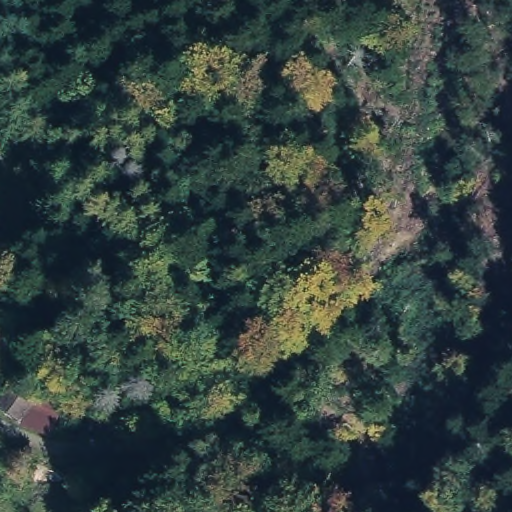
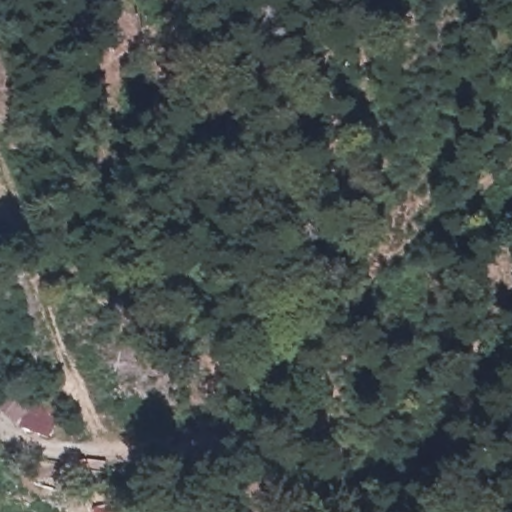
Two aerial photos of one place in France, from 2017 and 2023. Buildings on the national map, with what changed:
unchanged [(17,425),(0,410),(0,387),(5,381),(29,396),(34,386),(62,395),(46,436),(17,425)]

